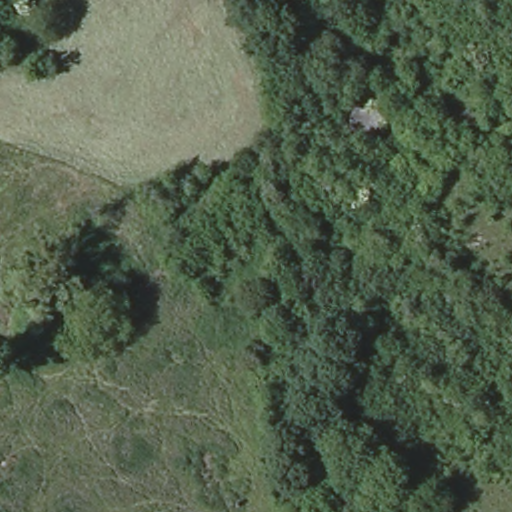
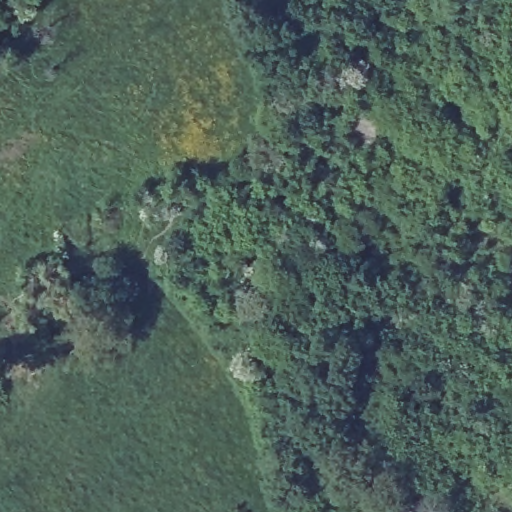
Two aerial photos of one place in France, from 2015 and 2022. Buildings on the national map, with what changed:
unchanged [(380,111),(375,142),(349,134),(354,108),(380,111)]

